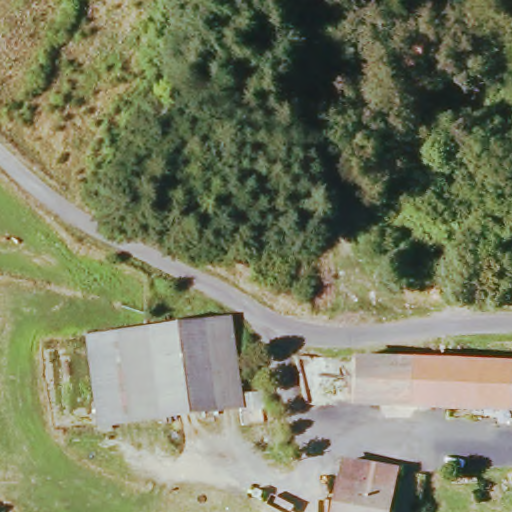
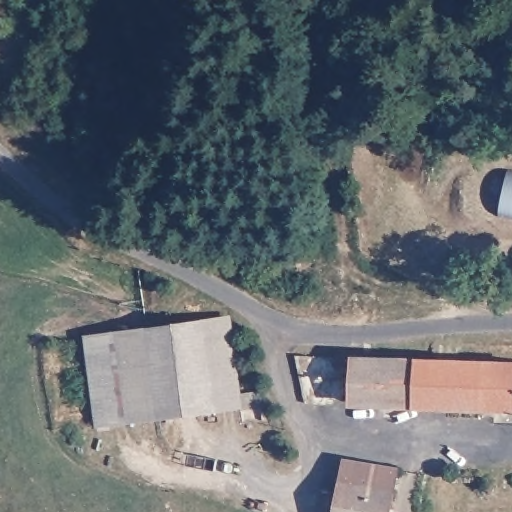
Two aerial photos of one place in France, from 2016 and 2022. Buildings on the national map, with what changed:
unchanged [(232,319),(243,405),(99,424),(85,337),(232,319)]
unchanged [(359,362),(512,366),(512,409),(357,406),(359,362)]
unchanged [(344,512),(352,462),(402,470),(396,512),(344,512)]

